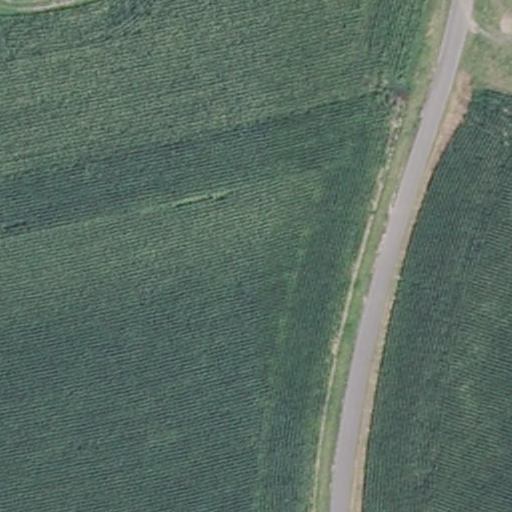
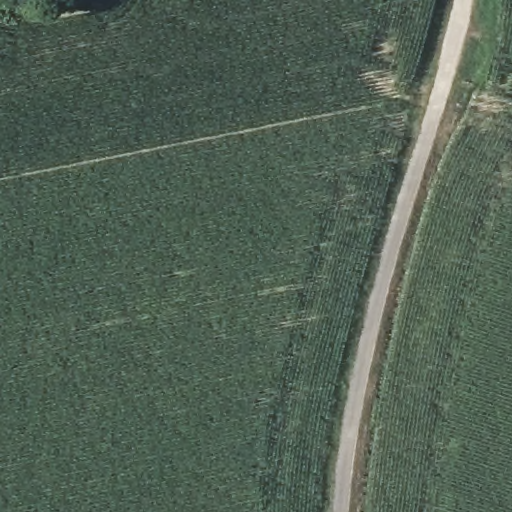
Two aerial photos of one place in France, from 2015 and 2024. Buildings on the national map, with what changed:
[]

